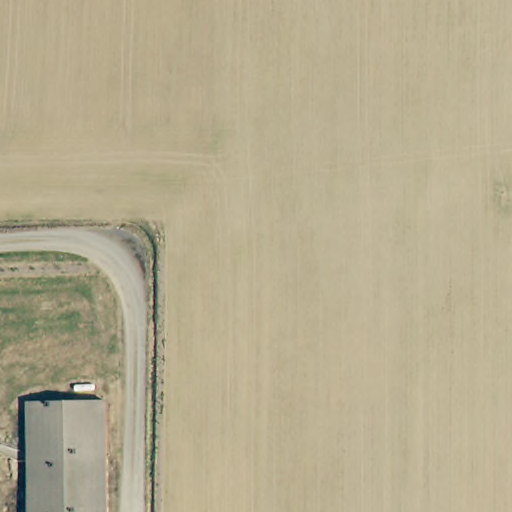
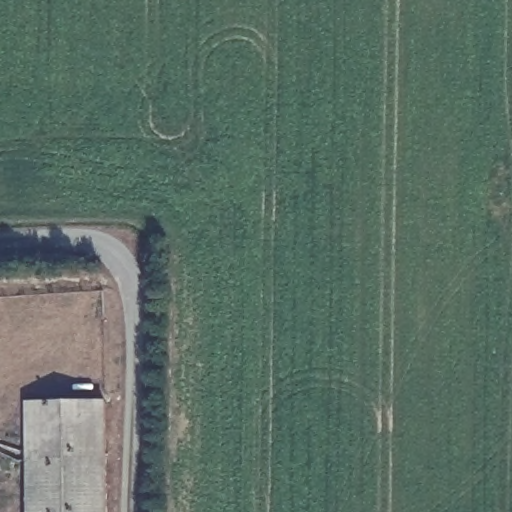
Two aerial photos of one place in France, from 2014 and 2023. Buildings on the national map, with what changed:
unchanged [(106,396),(107,512),(29,512),(28,395),(106,396)]

